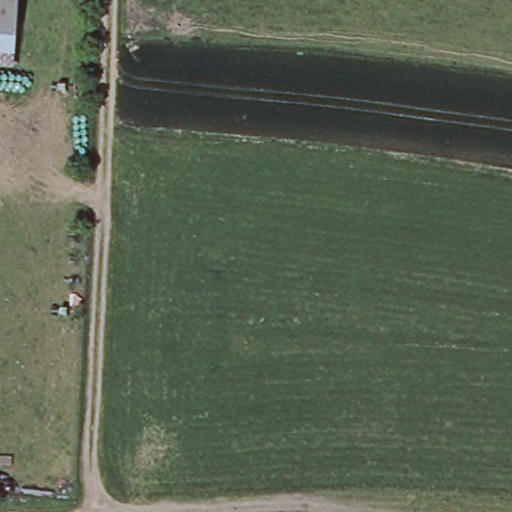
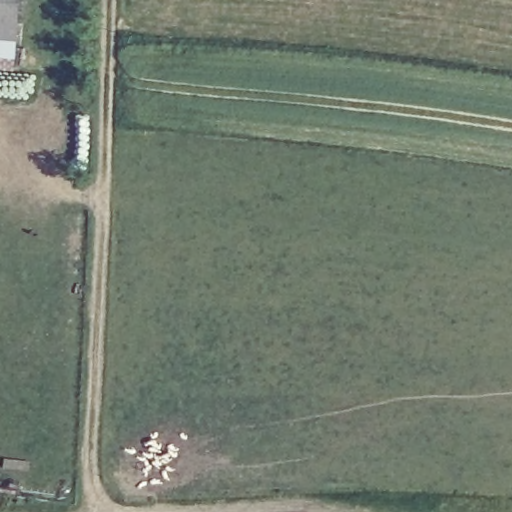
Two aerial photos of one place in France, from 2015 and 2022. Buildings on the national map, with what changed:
unchanged [(20,0),(11,69),(0,68),(0,0),(20,0)]

